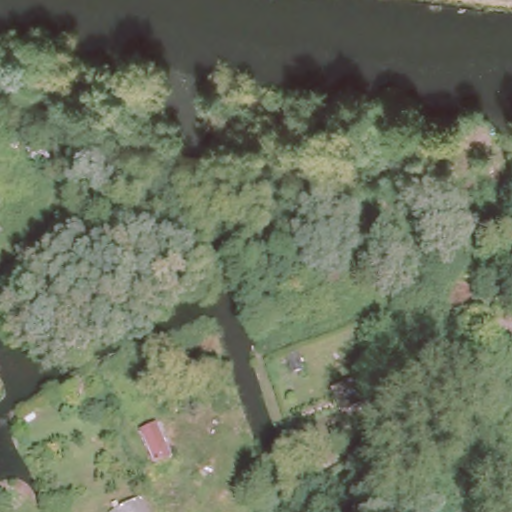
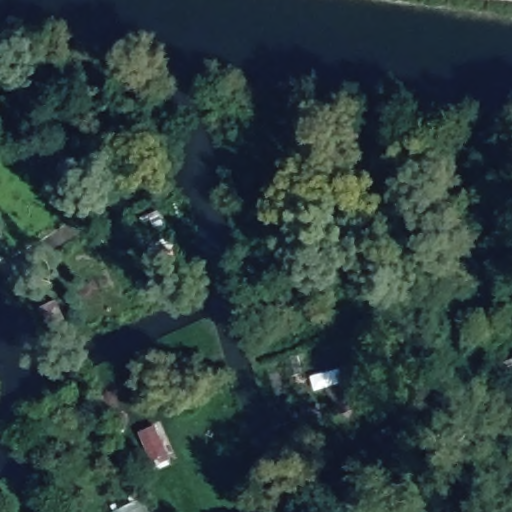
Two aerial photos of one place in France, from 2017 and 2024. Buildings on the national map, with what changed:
unchanged [(39,149),(46,160),(37,167),(29,157),(39,149)]
unchanged [(512,271),(511,271),(504,252),(512,250),(512,271)]
unchanged [(336,279),(323,282),(316,260),(331,257),(336,279)]
unchanged [(76,289),(82,299),(71,305),(65,295),(76,289)]
unchanged [(54,295),(65,313),(48,323),(38,305),(54,295)]
unchanged [(373,400),(339,416),(330,391),(363,376),(373,400)]
unchanged [(322,420),(336,414),(342,427),(328,433),(322,420)]
unchanged [(169,452),(153,462),(138,430),(154,422),(169,452)]
unchanged [(154,512),(119,512),(148,498),(154,512)]

